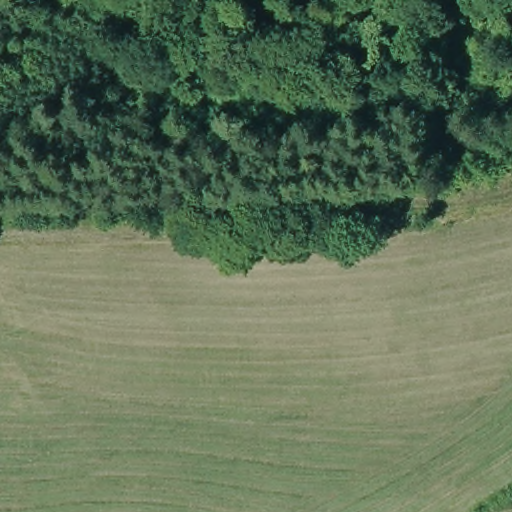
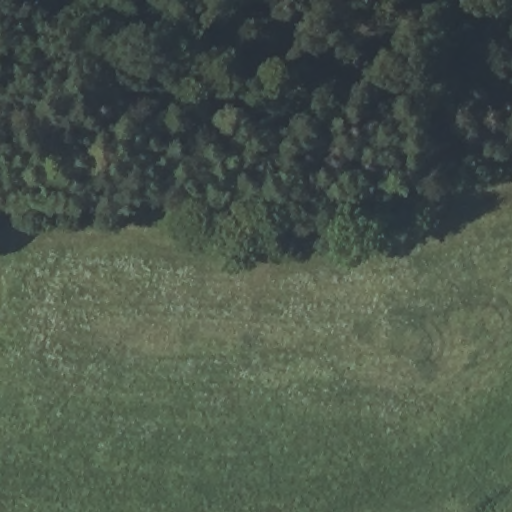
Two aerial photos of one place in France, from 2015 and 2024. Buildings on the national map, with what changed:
[]

